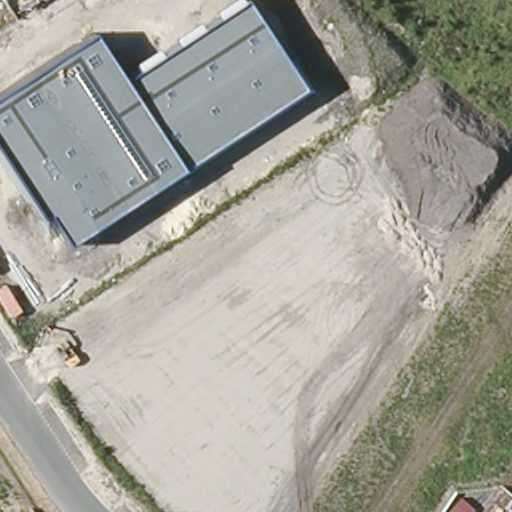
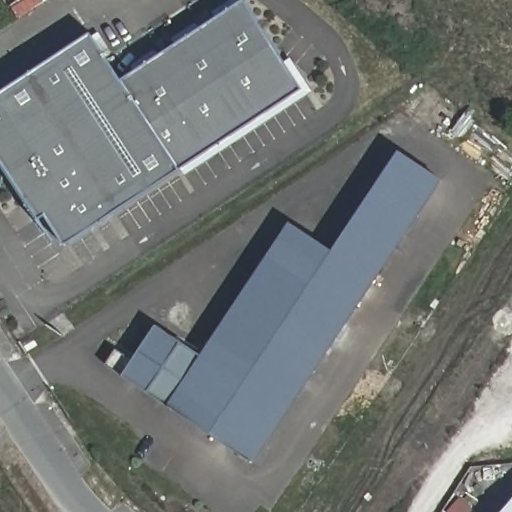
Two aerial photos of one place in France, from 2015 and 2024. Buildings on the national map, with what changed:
unchanged [(121,79),(246,1),(303,91),(180,171),(68,245),(50,212),(42,218),(0,152),(0,95),(94,34),(121,79)]
new [(333,251),(401,151),(446,182),(255,462),(168,405),(107,364),(138,318),(157,327),(201,353),(290,223),(333,251)]
new [(512,502),(512,512),(504,512),(512,502)]

